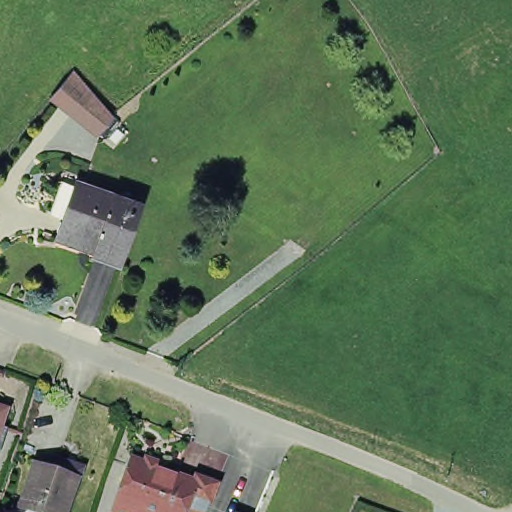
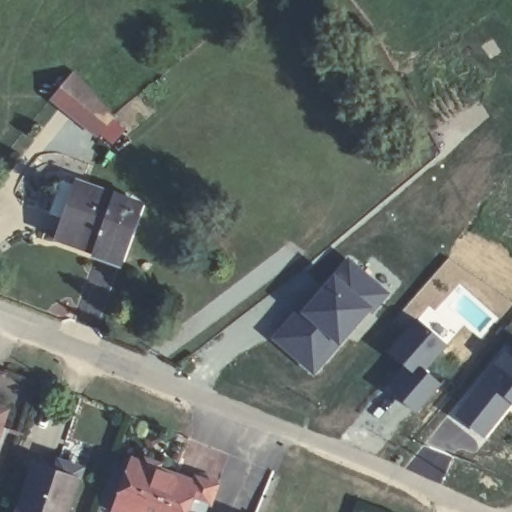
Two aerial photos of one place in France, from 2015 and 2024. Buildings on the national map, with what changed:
unchanged [(57,92),(77,67),(117,111),(103,127),(57,92)]
demolished [(288,177),(285,181),(304,193),(283,224),(257,204),(260,199),(230,179),(248,152),(288,177)]
unchanged [(78,177),(142,202),(121,257),(57,231),(78,177)]
new [(388,293),(312,377),(270,340),(347,257),(388,293)]
new [(445,345),(423,372),(440,385),(413,417),(387,393),(405,372),(383,353),(415,321),(445,345)]
new [(484,433),(455,408),(504,344),(510,348),(512,345),(512,399),(510,398),(484,433)]
unchanged [(2,428),(0,435),(0,428),(2,428)]
unchanged [(33,458),(55,465),(58,456),(82,464),(78,473),(66,512),(16,512),(20,498),(33,458)]
unchanged [(111,503),(129,459),(192,483),(194,477),(211,483),(214,485),(201,512),(198,512),(182,506),(180,512),(109,512),(108,512),(111,503)]

